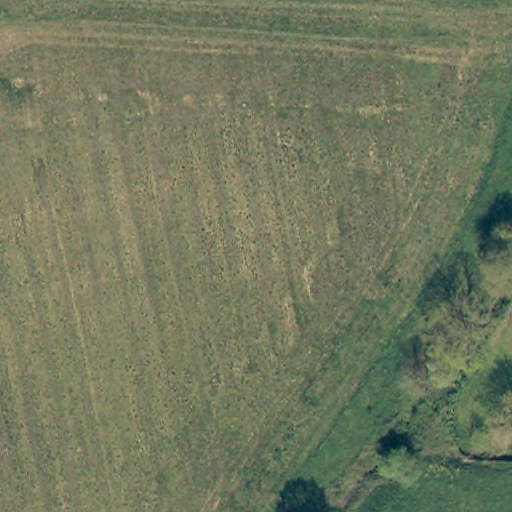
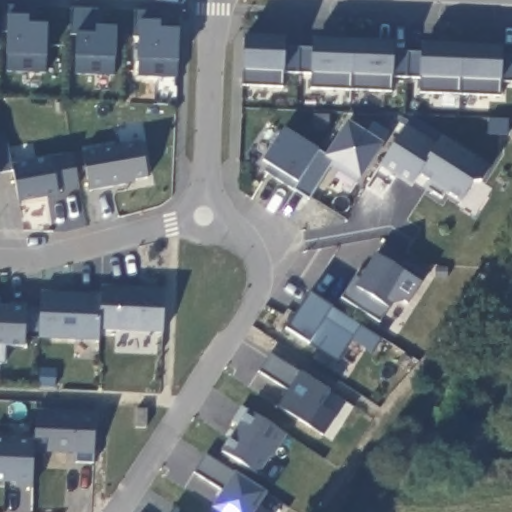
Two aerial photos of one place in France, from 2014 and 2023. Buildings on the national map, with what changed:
new [(44,74),(5,72),(5,54),(6,29),(1,31),(3,6),(28,8),(29,16),(29,24),(48,25),(44,74)]
new [(76,75),(75,58),(76,36),(68,36),(70,8),(97,9),(96,28),(116,29),(115,59),(112,76),(76,75)]
new [(137,47),(127,50),(128,38),(132,38),(134,14),(162,14),(161,24),(161,29),(179,31),(177,62),(176,79),(137,78),(137,47)]
new [(500,81),(500,96),(421,94),(420,79),(392,79),(391,91),(311,88),(311,75),(282,74),(280,86),(245,85),(245,71),(245,36),(285,38),(285,45),(312,46),(313,41),(393,43),(393,49),(421,51),(421,45),(502,48),(503,54),(512,56),(512,81),(500,81)]
new [(320,151),(325,157),(347,122),(383,145),(360,181),(331,163),(309,198),(297,184),(320,151)]
new [(433,144),(411,186),(380,166),(405,126),(433,144)]
new [(297,184),(292,191),(264,174),(271,167),(264,161),(285,130),(320,151),(297,184)]
new [(491,168),(481,184),(472,185),(462,204),(447,196),(444,200),(426,189),(431,183),(418,176),(442,137),(491,168)]
new [(60,197),(20,204),(13,171),(0,173),(0,143),(8,143),(12,165),(51,158),(72,153),(79,186),(57,190),(60,197)]
new [(150,181),(89,193),(80,154),(141,143),(150,181)]
new [(354,279),(357,281),(374,255),(377,257),(379,250),(420,275),(415,282),(420,286),(407,306),(396,306),(381,324),(342,300),(354,279)]
new [(100,286),(166,290),(165,335),(97,333),(99,295),(100,286)]
new [(99,295),(97,333),(97,343),(40,340),(42,292),(99,295)]
new [(338,365),(310,346),(285,331),(309,295),(333,309),(360,326),(338,365)]
new [(9,303),(29,304),(25,348),(0,346),(0,307),(9,307),(9,303)]
new [(300,374),(330,393),(320,408),(335,417),(323,436),(308,427),(276,409),(290,390),(258,371),(269,354),(300,374)]
new [(250,409),(288,436),(273,460),(270,459),(258,477),(221,451),(250,409)]
new [(35,411),(95,413),(93,463),(75,462),(75,452),(34,451),(34,440),(35,411)]
new [(32,487),(15,486),(15,481),(0,480),(0,439),(34,440),(32,487)]
new [(235,475),(267,495),(258,509),(264,512),(216,512),(212,510),(223,490),(195,472),(205,455),(235,475)]
new [(175,508),(181,512),(172,512),(175,508)]

